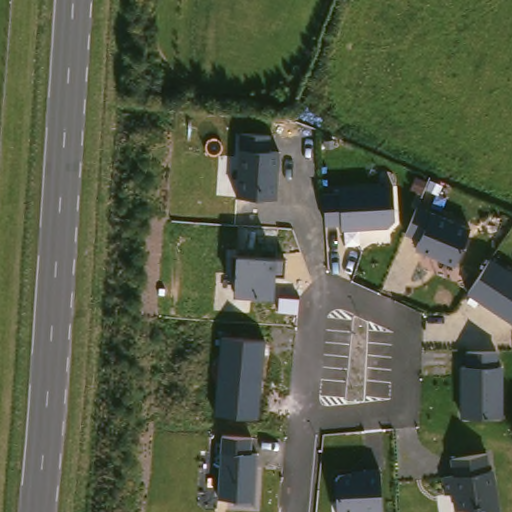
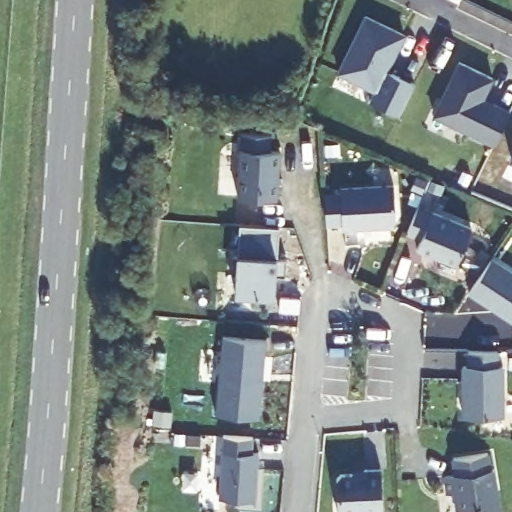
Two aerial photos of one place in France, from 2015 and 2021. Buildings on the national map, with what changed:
new [(365,31),(403,49),(386,85),(414,98),(398,129),(370,116),(375,105),(338,88),(365,31)]
new [(458,75),(492,91),(481,114),(492,120),(494,116),(508,123),(493,157),(433,128),(458,75)]
unchanged [(240,147),(240,132),(272,134),(272,150),(280,150),(277,197),(237,195),(240,147)]
unchanged [(394,186),(394,225),(342,229),(340,189),(394,186)]
unchanged [(471,228),(454,265),(416,247),(420,240),(405,234),(417,205),(471,228)]
unchanged [(283,275),(275,271),(272,297),(235,293),(237,254),(276,257),(286,259),(283,275)]
unchanged [(491,259),(512,273),(512,318),(471,291),(491,259)]
unchanged [(214,413),(221,335),(267,339),(258,417),(214,413)]
unchanged [(460,350),(500,351),(501,365),(504,365),(503,417),(460,415),(460,350)]
unchanged [(252,436),(252,451),(258,451),(255,500),(217,496),(222,435),(252,436)]
unchanged [(457,511),(454,495),(446,495),(444,477),(452,476),(451,458),(494,453),(498,512),(467,512),(467,510),(457,511)]
unchanged [(383,512),(337,512),(336,473),(382,472),(383,512)]

